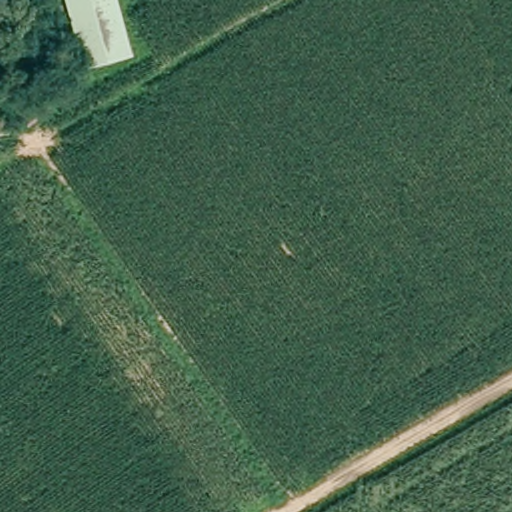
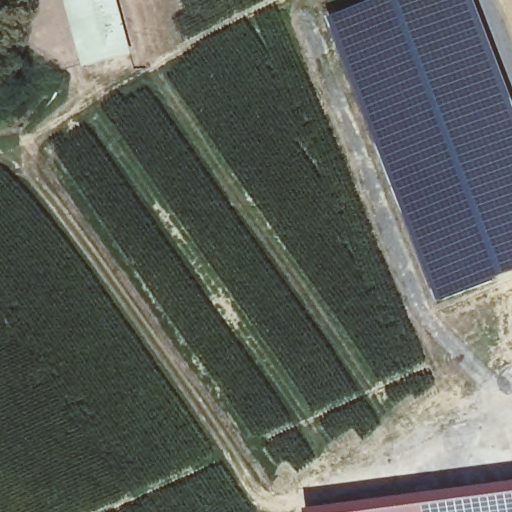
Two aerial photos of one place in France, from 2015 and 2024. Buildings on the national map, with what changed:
unchanged [(57,0),(115,0),(135,65),(83,82),(57,0)]
new [(375,0),(475,0),(508,81),(512,91),(512,273),(438,302),(428,279),(363,111),(330,18),(375,0)]
new [(309,512),(309,510),(512,483),(512,512),(309,512)]

